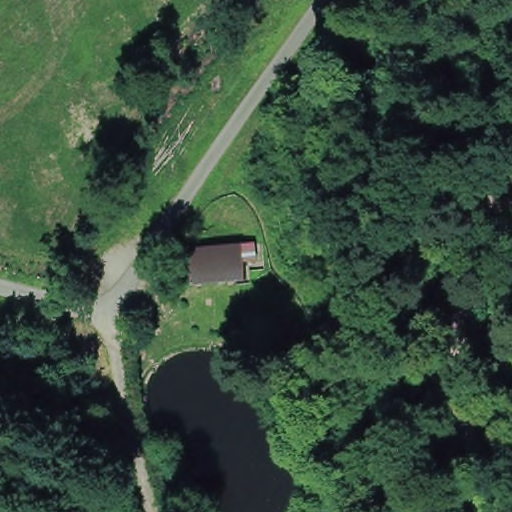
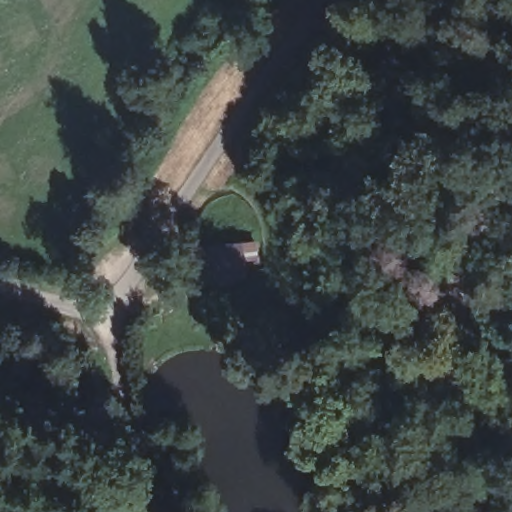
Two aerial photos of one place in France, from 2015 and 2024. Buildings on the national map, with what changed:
unchanged [(254,241),(258,275),(205,282),(200,248),(254,241)]

